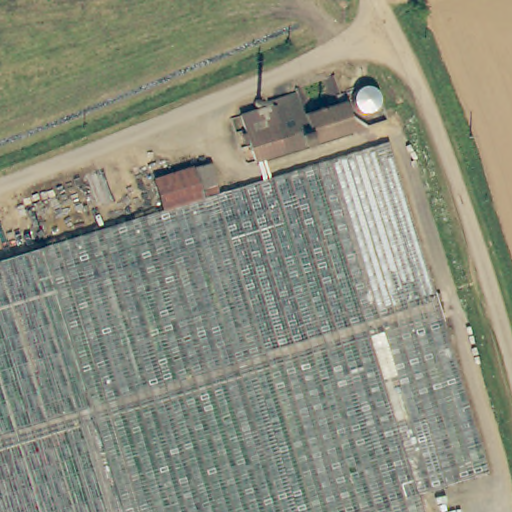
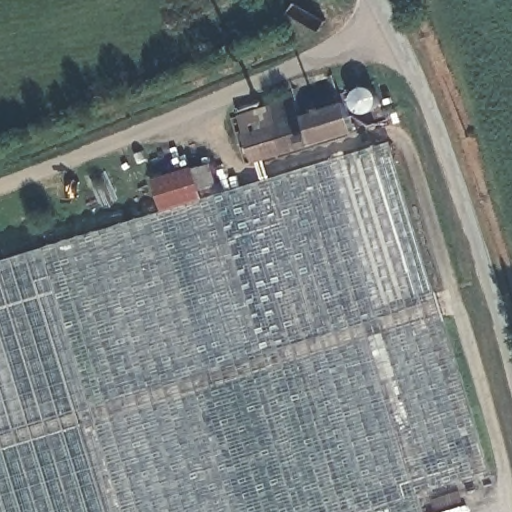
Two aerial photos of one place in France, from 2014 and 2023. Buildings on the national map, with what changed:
unchanged [(371,85),(373,85),(374,85),(376,86),(377,87),(378,88),(379,89),(380,90),(381,91),(382,93),(382,94),(382,96),(383,97),(382,99),(382,100),(382,102),(381,103),(380,105),(379,106),(378,107),(377,108),(375,109),(374,109),(372,109),(371,110),(369,110),(367,109),(366,109),(364,108),(363,108),(362,107),(361,106),(360,104),(359,103),(358,101),(358,100),(358,98),(357,97),(358,95),(358,94),(358,92),(359,91),(360,90),(361,88),(362,87),(363,86),(365,86),(366,85),(368,85),(369,85),(371,85)]
unchanged [(273,104),(273,99),(301,90),(308,113),(350,100),(359,128),(260,159),(246,112),(273,104)]
unchanged [(492,470),(421,492),(425,506),(427,512),(0,512),(0,259),(168,208),(159,178),(214,162),(223,191),(393,140),(492,470)]

